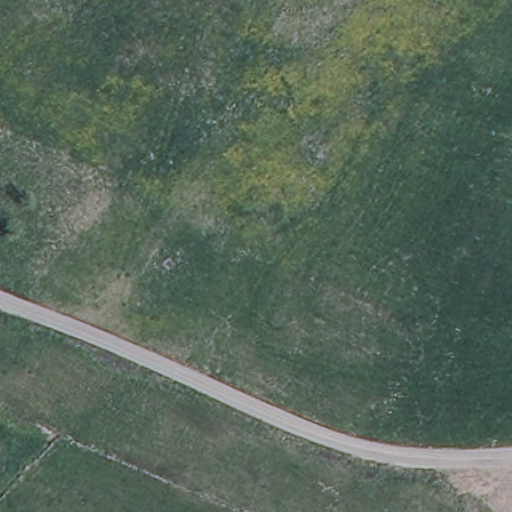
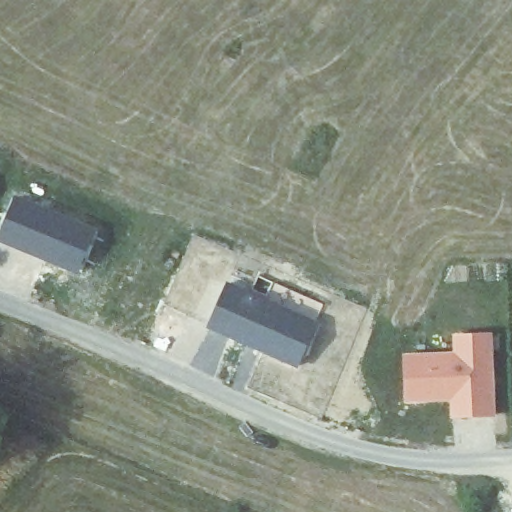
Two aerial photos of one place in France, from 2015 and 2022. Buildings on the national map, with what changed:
new [(95,230),(78,274),(0,241),(0,232),(15,194),(95,230)]
new [(316,322),(300,370),(208,327),(226,283),(316,322)]
new [(451,395),(405,397),(403,353),(454,351),(454,332),(489,331),(492,412),(460,413),(451,414),(451,395)]

